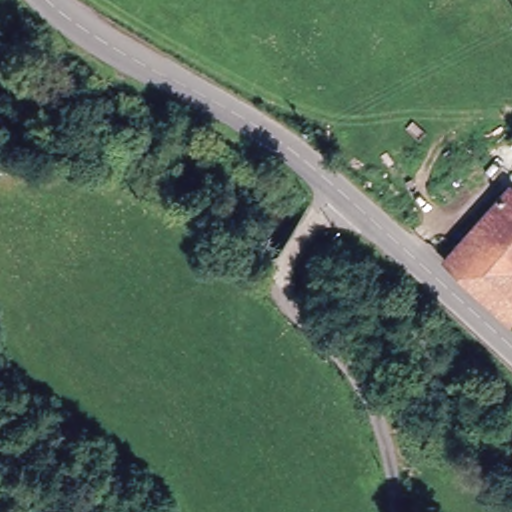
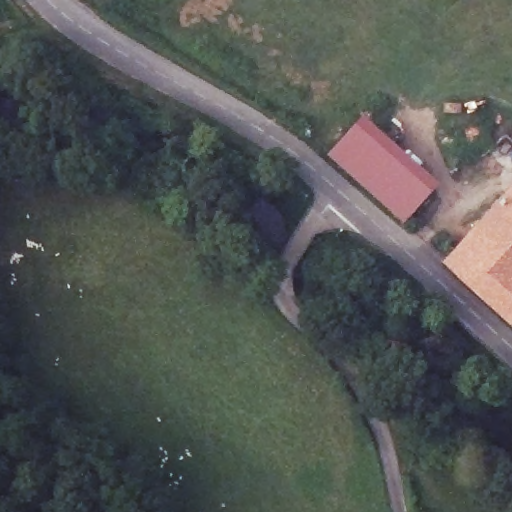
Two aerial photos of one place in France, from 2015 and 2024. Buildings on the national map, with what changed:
new [(364,116),(440,185),(404,223),(328,156),(364,116)]
unchanged [(511,189),(512,189),(512,316),(444,258),(511,189)]

